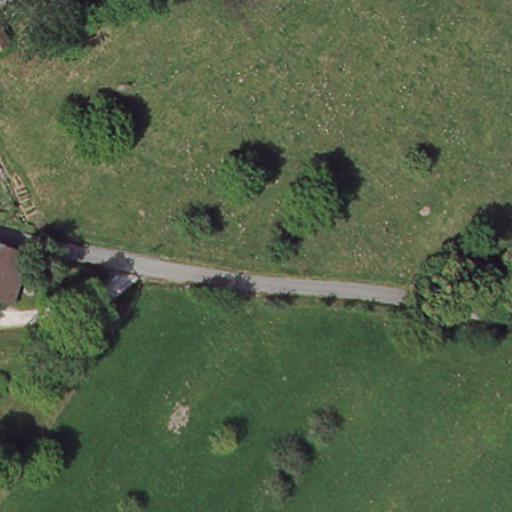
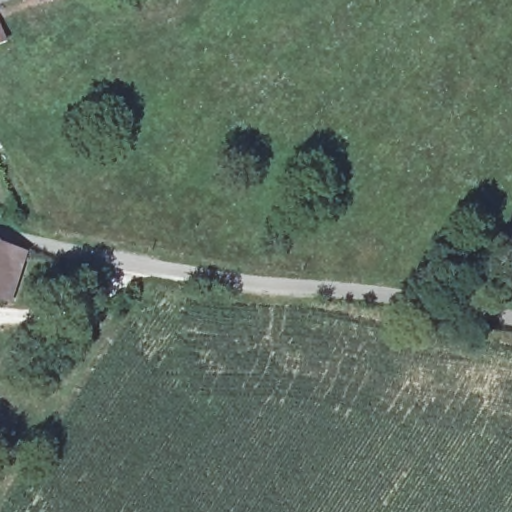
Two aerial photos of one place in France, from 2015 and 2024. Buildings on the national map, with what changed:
unchanged [(6,41),(0,43),(0,21),(3,31),(6,41)]
unchanged [(0,250),(18,255),(1,307),(0,307),(0,250)]

